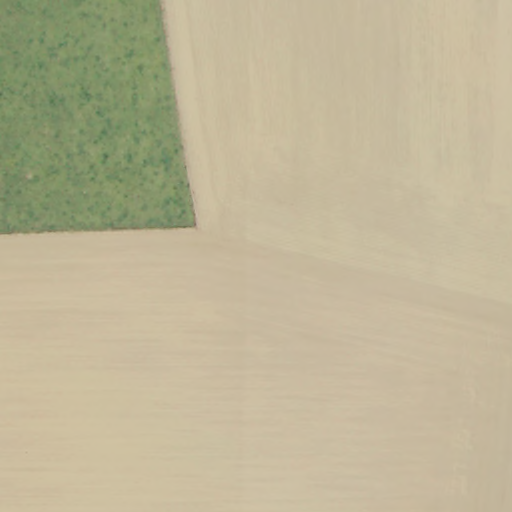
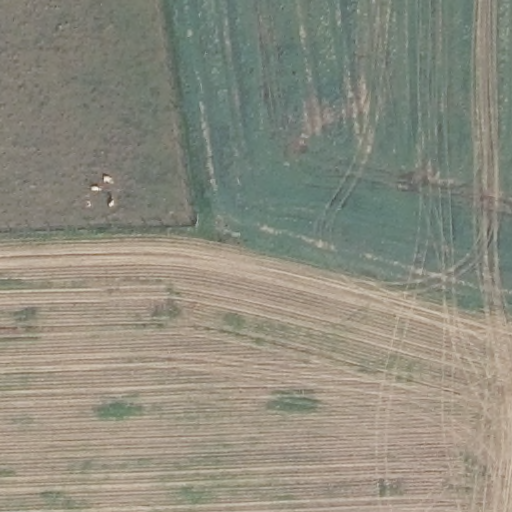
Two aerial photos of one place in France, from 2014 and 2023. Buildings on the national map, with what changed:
[]

